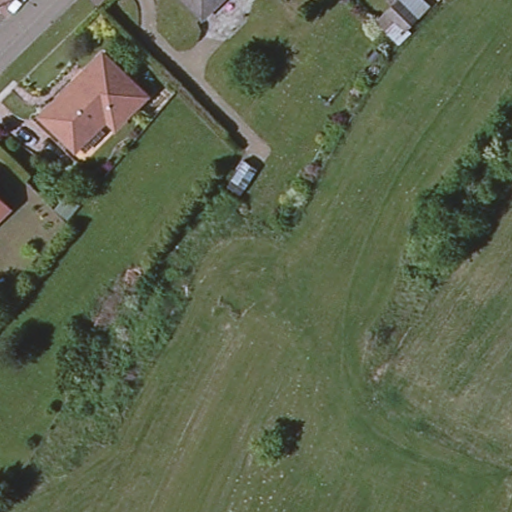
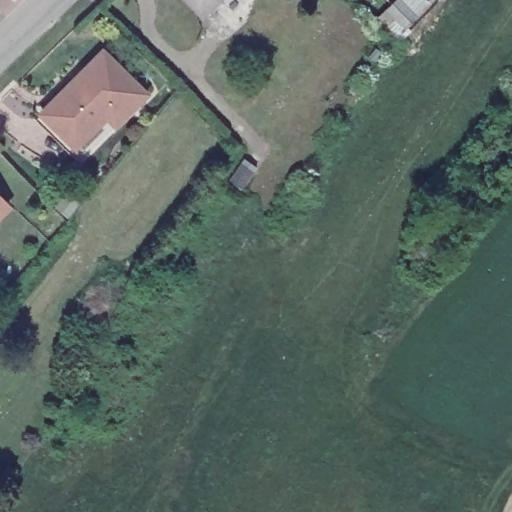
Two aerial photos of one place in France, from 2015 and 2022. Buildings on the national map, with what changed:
unchanged [(190,0),(216,0),(203,13),(190,0)]
unchanged [(394,34),(376,15),(391,0),(427,0),(394,34)]
unchanged [(145,93),(115,124),(107,115),(75,146),(43,111),(103,50),(145,93)]
unchanged [(11,204),(0,215),(0,194),(11,204)]

